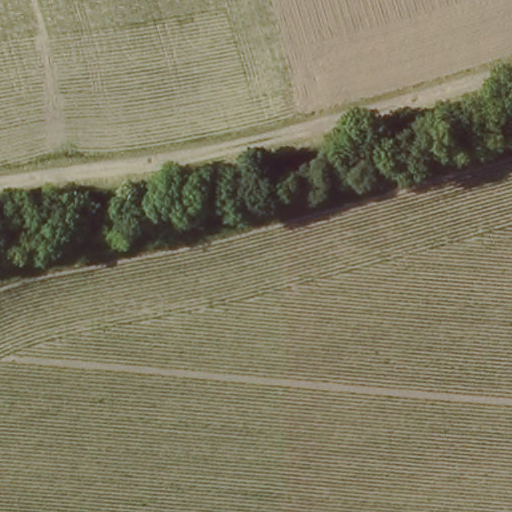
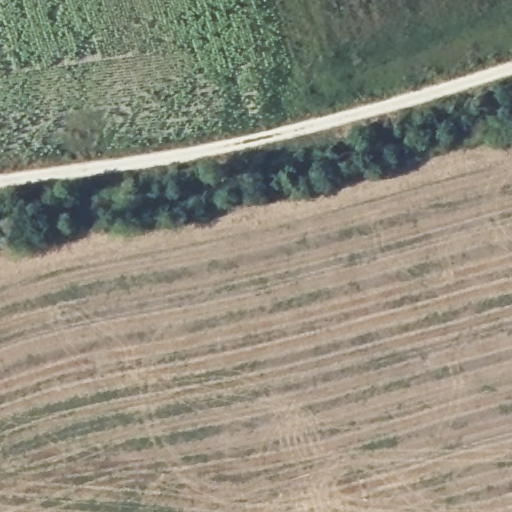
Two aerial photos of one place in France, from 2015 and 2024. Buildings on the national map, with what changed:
[]

